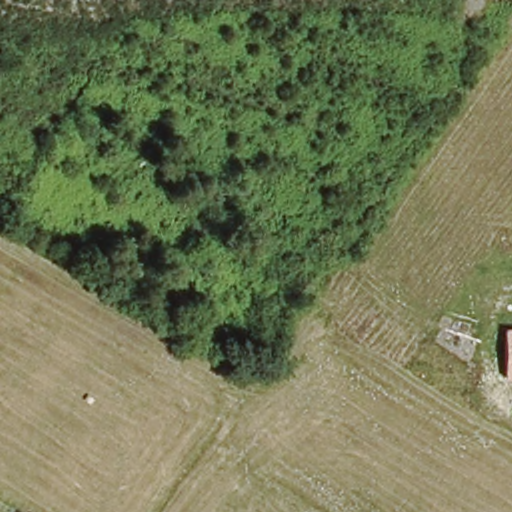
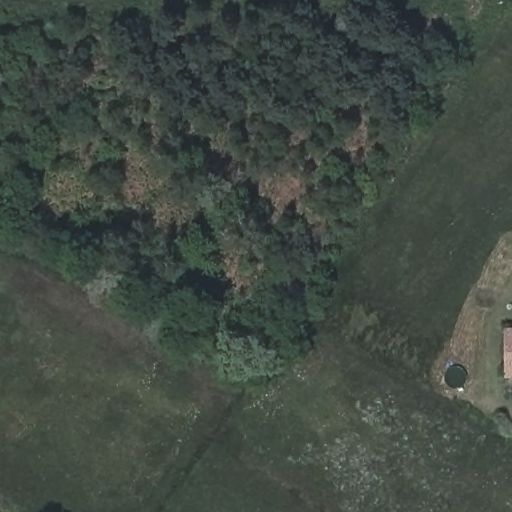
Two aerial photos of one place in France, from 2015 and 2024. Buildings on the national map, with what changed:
unchanged [(503,330),(512,329),(512,380),(505,380),(503,330)]

